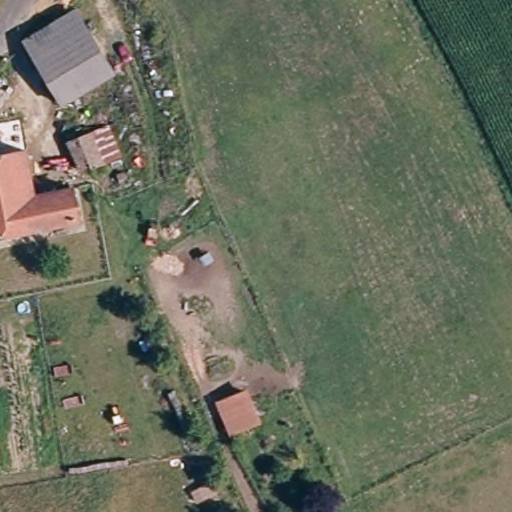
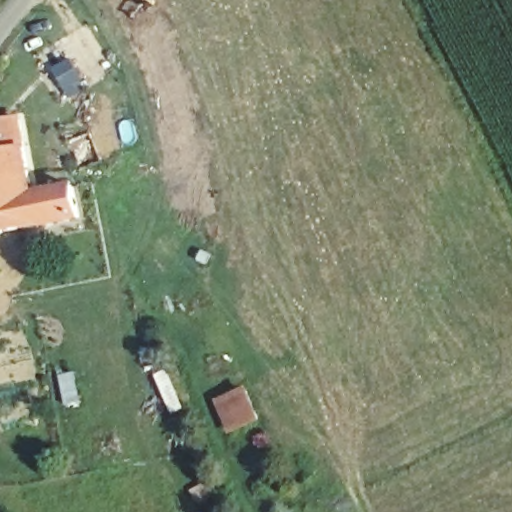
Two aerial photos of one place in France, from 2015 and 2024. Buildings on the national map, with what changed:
demolished [(25,35),(79,5),(116,69),(68,105),(25,35)]
unchanged [(26,179),(69,174),(73,206),(0,217),(0,108),(16,104),(26,179)]
demolished [(111,124),(122,153),(80,168),(70,137),(111,124)]
unchanged [(257,427),(222,442),(206,407),(240,390),(257,427)]

